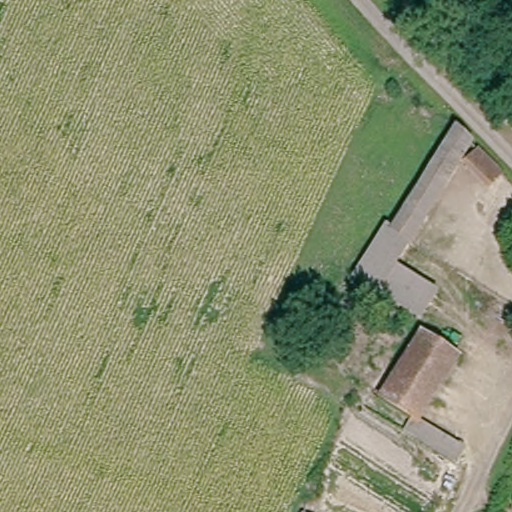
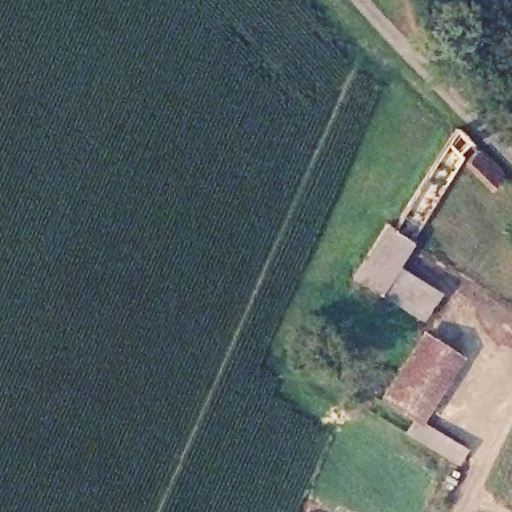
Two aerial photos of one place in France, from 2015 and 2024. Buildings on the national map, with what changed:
unchanged [(501,184),(487,197),(461,170),(398,264),(374,249),(385,231),(392,234),(449,139),(485,168),(501,184)]
unchanged [(427,330),(354,282),(374,249),(398,264),(449,298),(427,330)]
unchanged [(432,337),(457,357),(415,414),(411,417),(385,398),(399,377),(432,337)]
unchanged [(411,417),(415,414),(458,448),(446,463),(401,429),(405,424),(411,417)]

